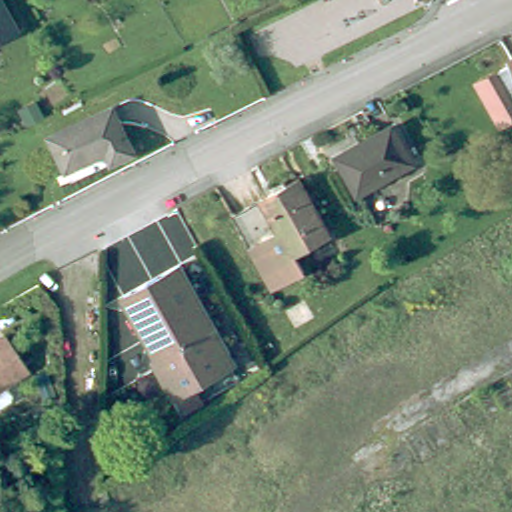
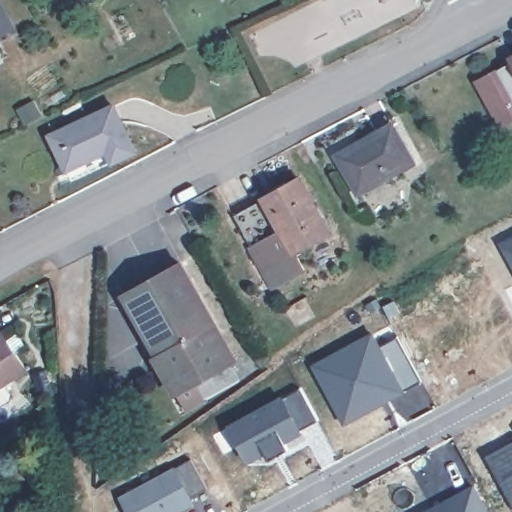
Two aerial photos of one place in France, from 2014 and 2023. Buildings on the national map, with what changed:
unchanged [(0,37),(0,9),(13,30),(0,37)]
new [(473,82),(509,61),(512,65),(512,118),(498,126),(473,82)]
unchanged [(137,153),(112,164),(107,153),(65,173),(48,137),(114,105),(137,153)]
unchanged [(416,163),(359,195),(336,156),(394,124),(416,163)]
unchanged [(333,233),(299,252),(309,269),(276,287),(235,214),(301,178),(333,233)]
new [(512,244),(512,262),(504,248),(512,244)]
unchanged [(164,270),(149,276),(142,255),(158,250),(164,270)]
unchanged [(240,361),(178,396),(157,358),(161,356),(128,298),(186,265),(240,361)]
new [(346,426),(312,364),(374,331),(382,345),(399,335),(424,381),(406,390),(408,392),(346,426)]
unchanged [(1,332),(26,368),(0,387),(0,333),(1,332)]
new [(284,443),(289,449),(269,459),(266,453),(248,463),(227,425),(281,395),(283,397),(301,388),(319,421),(301,431),(303,433),(284,443)]
new [(193,497),(196,503),(179,512),(128,512),(119,497),(192,457),(208,488),(193,497)]
new [(433,510),(473,488),(486,512),(434,512),(433,510)]

